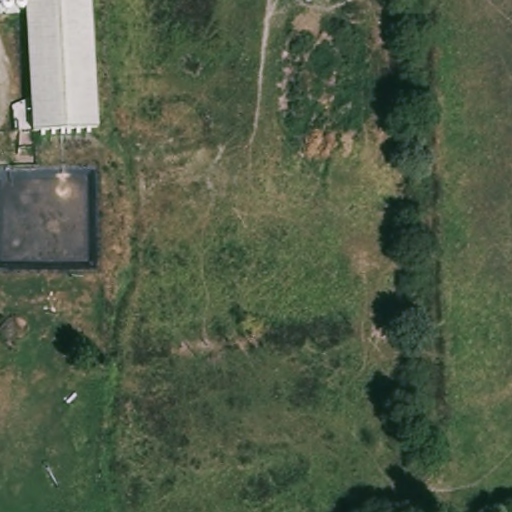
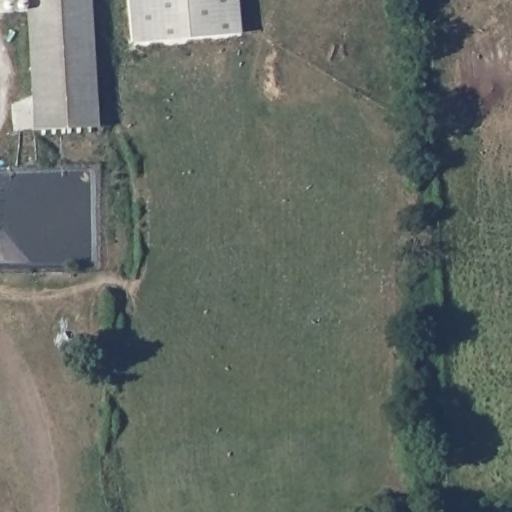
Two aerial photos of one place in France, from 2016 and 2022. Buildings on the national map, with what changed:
unchanged [(32,131),(26,4),(11,7),(10,0),(91,0),(97,126),(32,131)]
new [(241,32),(133,42),(130,0),(238,0),(241,32)]

